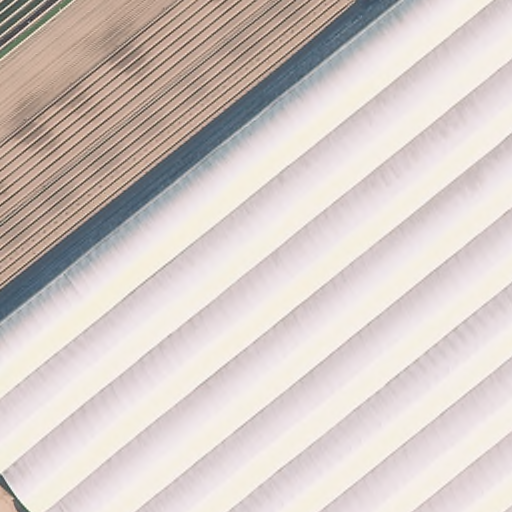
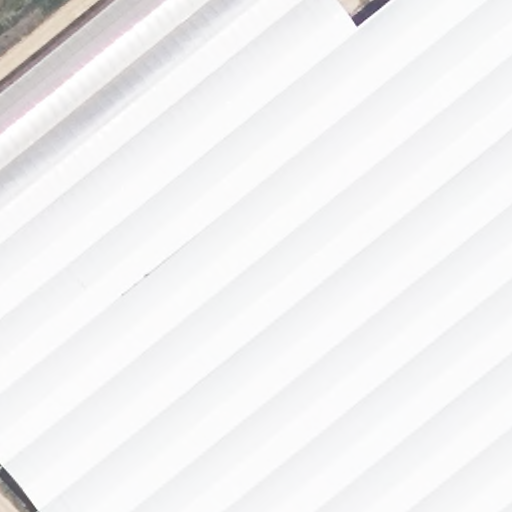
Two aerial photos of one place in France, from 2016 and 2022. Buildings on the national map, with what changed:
new [(356,30),(0,316),(0,97),(119,0),(332,0),(356,30)]
unchanged [(34,512),(0,470),(0,316),(394,0),(512,0),(512,512),(34,512)]
new [(392,1),(392,0),(394,0),(392,1)]

